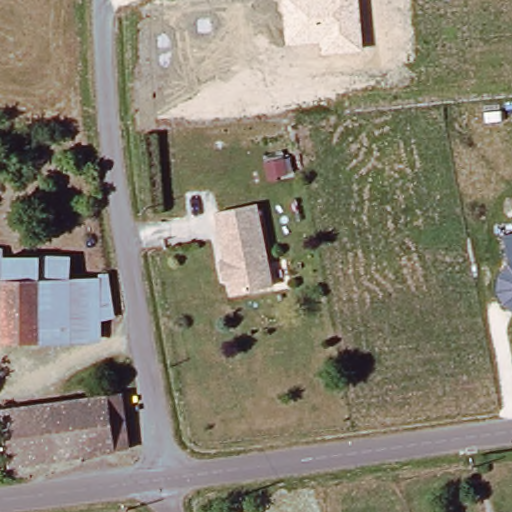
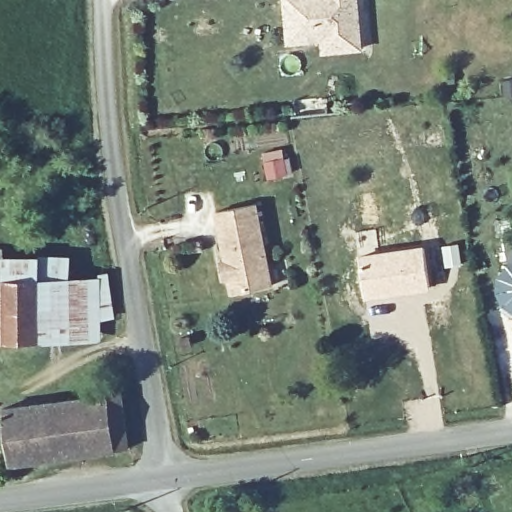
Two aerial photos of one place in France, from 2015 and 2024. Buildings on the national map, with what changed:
unchanged [(364,50),(323,54),(322,40),(289,45),(285,0),(360,0),(364,50)]
unchanged [(263,172),(259,155),(278,151),(280,168),(263,172)]
unchanged [(223,263),(229,263),(220,211),(259,205),(273,288),(235,295),(232,275),(225,276),(223,263)]
unchanged [(512,235),(512,308),(503,300),(498,287),(500,273),(508,261),(504,236),(512,235)]
new [(364,300),(358,255),(423,246),(429,290),(364,300)]
unchanged [(0,249),(74,250),(75,273),(0,272),(0,249)]
unchanged [(76,340),(75,273),(103,273),(103,268),(113,265),(124,315),(104,320),(105,340),(76,340)]
unchanged [(0,272),(75,273),(76,340),(0,338),(0,272)]
unchanged [(121,397),(127,452),(9,464),(3,408),(121,397)]

